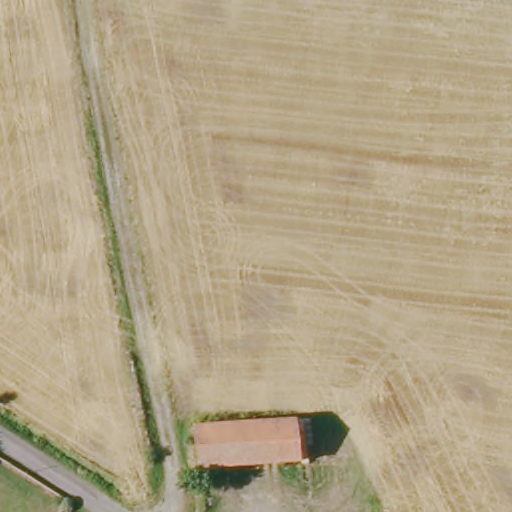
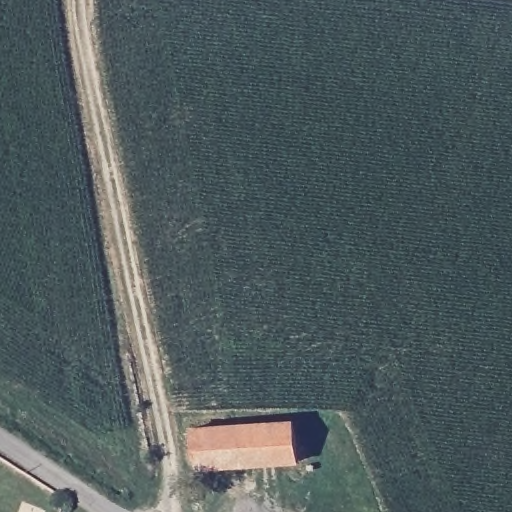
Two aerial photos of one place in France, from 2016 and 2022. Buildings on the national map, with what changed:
unchanged [(196,427),(293,422),(294,462),(195,466),(196,427)]

